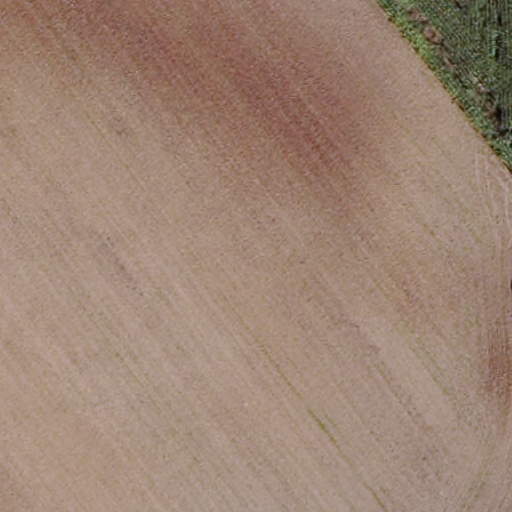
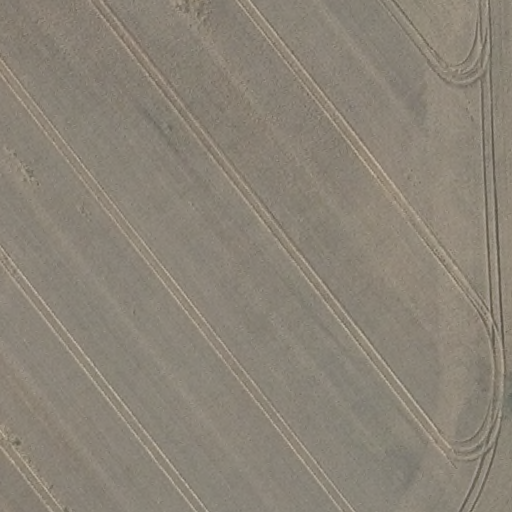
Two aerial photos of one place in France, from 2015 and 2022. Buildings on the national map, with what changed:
[]

